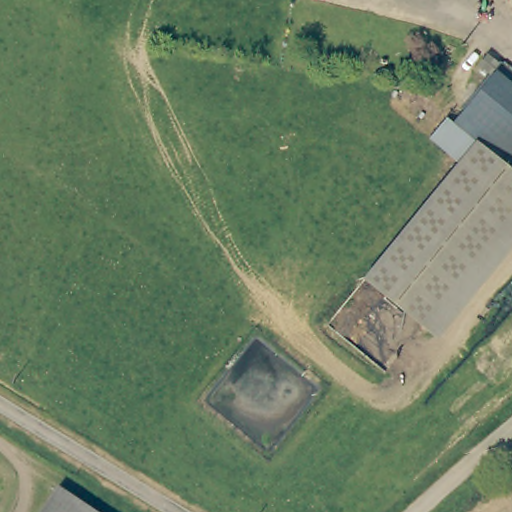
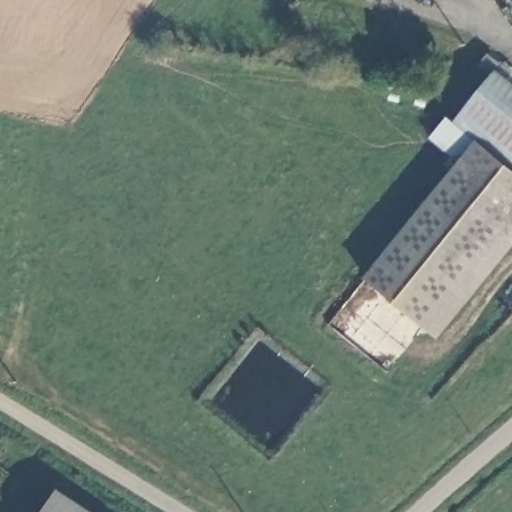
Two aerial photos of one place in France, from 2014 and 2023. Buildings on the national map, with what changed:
unchanged [(512,8),(512,10),(511,9),(512,8)]
unchanged [(494,60),(512,75),(512,153),(456,108),(494,60)]
unchanged [(512,214),(420,327),(361,280),(472,144),(512,176),(512,214)]
unchanged [(90,512),(39,512),(55,489),(90,512)]

